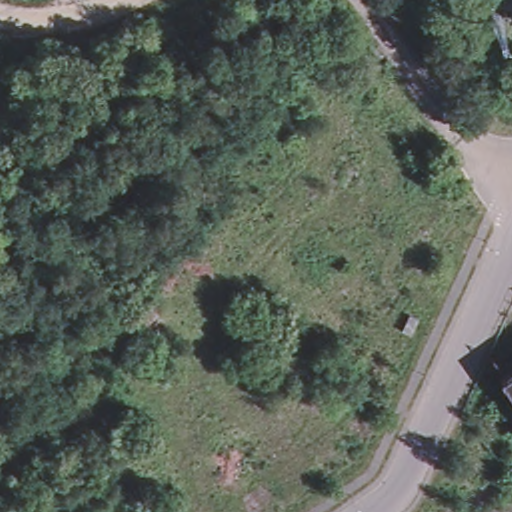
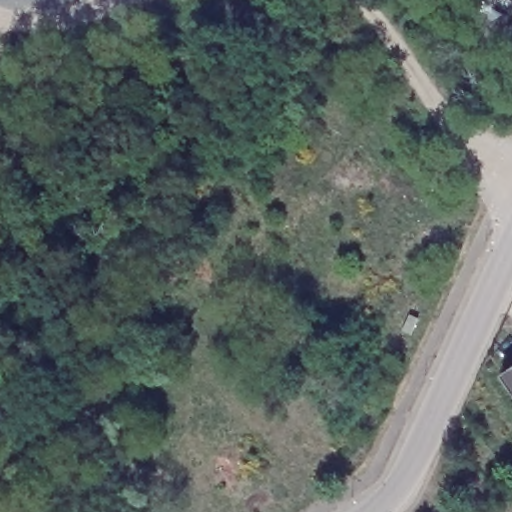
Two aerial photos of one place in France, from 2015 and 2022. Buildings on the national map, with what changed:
unchanged [(503,382),(512,376),(512,394),(503,382)]

